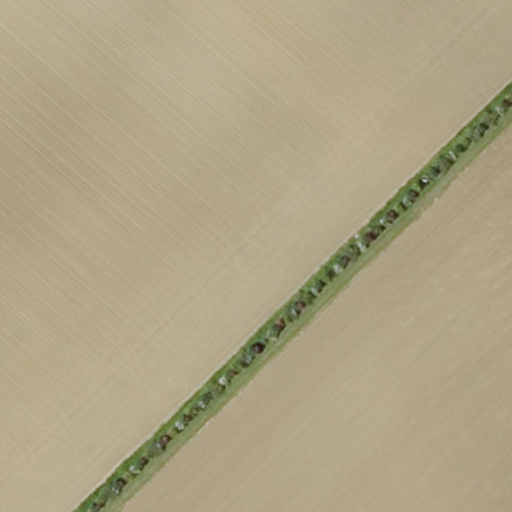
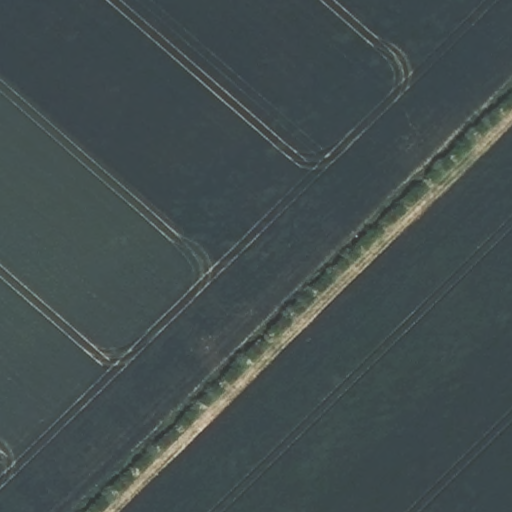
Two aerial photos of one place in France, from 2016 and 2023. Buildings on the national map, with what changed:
[]

